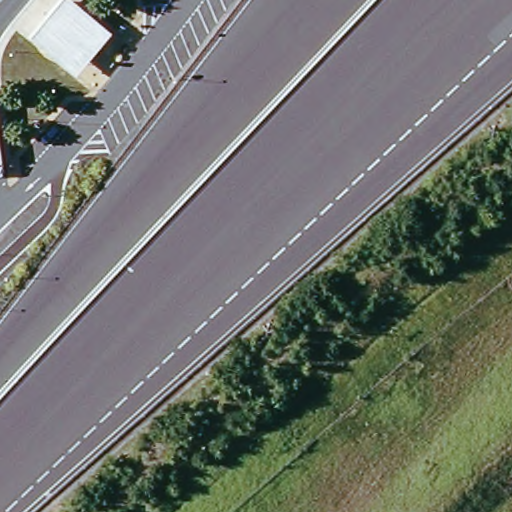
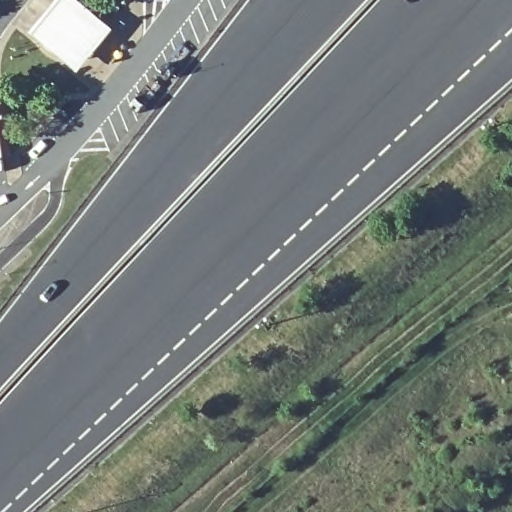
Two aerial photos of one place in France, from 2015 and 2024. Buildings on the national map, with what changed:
unchanged [(110,27),(77,66),(35,36),(60,0),(81,0),(110,27)]

